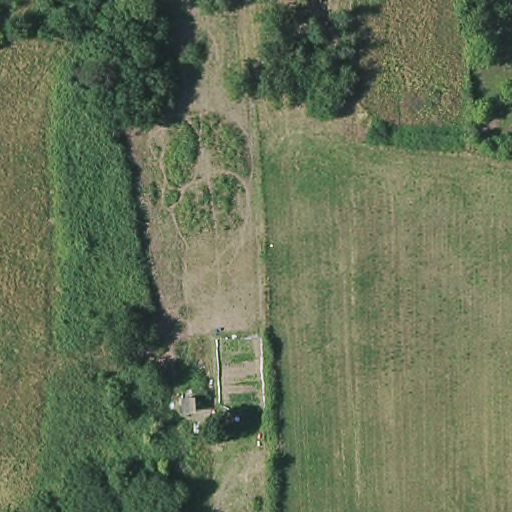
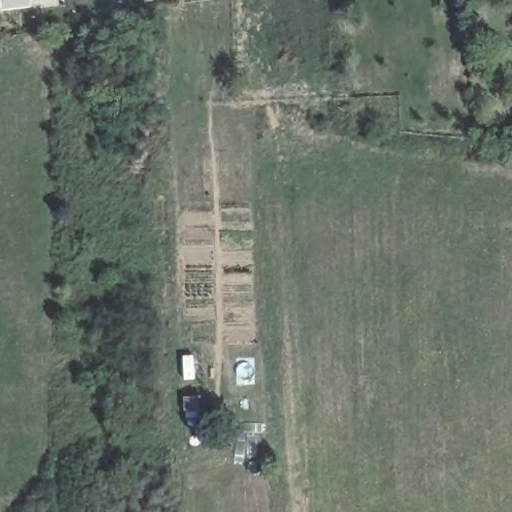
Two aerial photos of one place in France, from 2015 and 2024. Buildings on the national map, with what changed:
new [(32,10),(1,14),(0,4),(0,0),(31,0),(32,10)]

